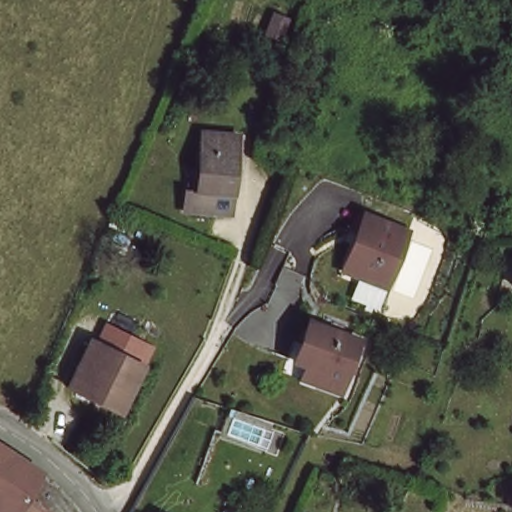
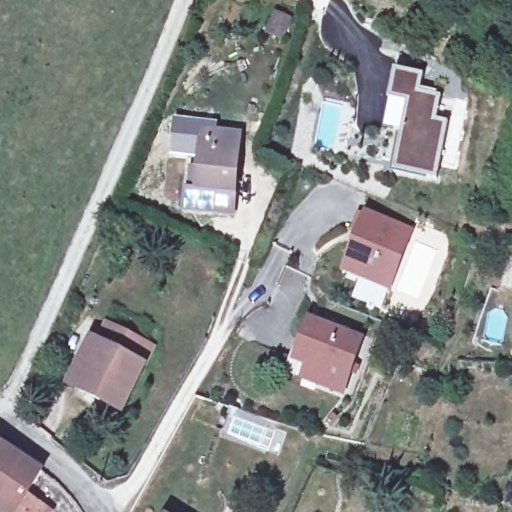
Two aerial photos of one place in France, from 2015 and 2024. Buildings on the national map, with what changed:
new [(406,65),(421,69),(419,79),(417,85),(439,89),(434,113),(445,114),(434,173),(391,164),(398,125),(385,123),(394,74),(404,76),(406,65)]
unchanged [(239,134),(232,211),(184,209),(185,188),(198,189),(201,149),(212,150),(212,130),(239,134)]
unchanged [(382,295),(352,281),(348,269),(361,242),(354,238),(363,218),(410,239),(382,295)]
unchanged [(309,358),(302,354),(318,316),(365,335),(362,342),(357,355),(345,388),(320,379),(304,372),(309,358)]
unchanged [(143,370),(122,414),(75,391),(82,377),(85,371),(97,346),(143,370)]
unchanged [(0,448),(21,461),(48,480),(32,503),(47,512),(0,512),(0,448)]

